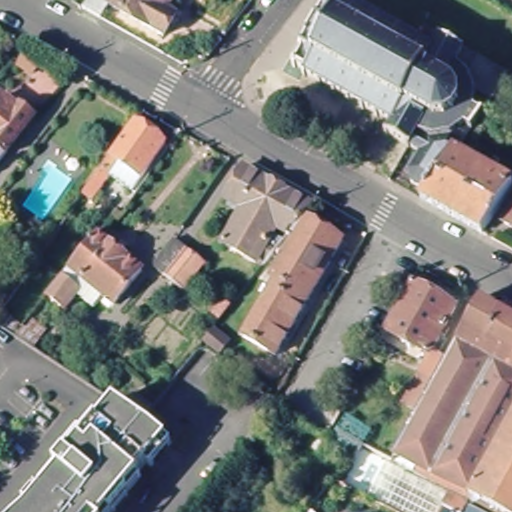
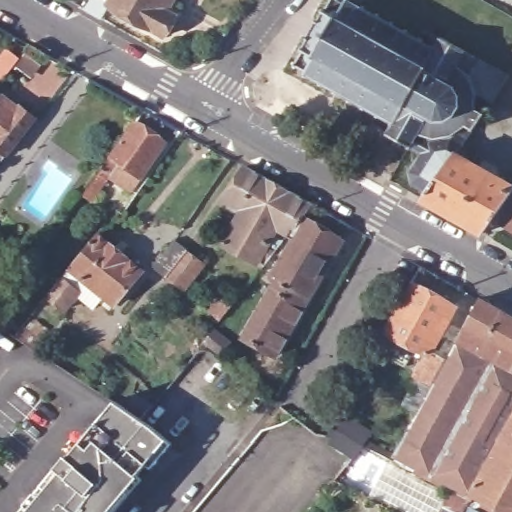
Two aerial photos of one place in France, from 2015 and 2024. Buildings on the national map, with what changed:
unchanged [(177,0),(168,15),(181,23),(170,44),(115,14),(105,27),(87,17),(100,0),(177,0)]
unchanged [(290,62),(293,64),(299,55),(297,53),(300,48),(301,49),(306,41),(305,40),(315,22),(318,23),(323,14),(321,12),(325,7),(327,8),(332,0),(344,0),(346,1),(347,0),(352,0),(357,2),(359,0),(368,0),(365,4),(369,7),(366,11),(377,16),(380,12),(384,15),(382,18),(392,24),(395,21),(399,24),(397,26),(406,32),(408,29),(412,31),(410,35),(423,42),(431,30),(512,77),(512,78),(473,133),(460,139),(445,143),(431,142),(418,164),(407,157),(405,160),(400,157),(402,154),(387,145),(385,149),(380,146),(381,143),(376,141),(380,136),(384,139),(388,134),(385,131),(386,128),(377,122),(374,125),(370,122),(373,118),(365,113),(361,117),(356,114),(358,110),(350,105),(346,109),(340,105),(343,101),(334,96),(331,100),(326,97),(328,93),(320,87),(316,91),(313,89),(316,86),(305,79),(302,84),(297,80),(300,75),(292,70),(291,73),(287,71),(290,69),(287,68),(290,62)]
unchanged [(8,154),(0,148),(0,102),(3,98),(9,91),(24,103),(21,107),(35,118),(8,154)]
unchanged [(137,188),(117,173),(95,203),(87,197),(140,124),(169,145),(137,188)]
unchanged [(409,178),(418,164),(431,142),(445,143),(460,139),(473,133),(458,154),(429,197),(413,188),(409,185),(408,182),(409,178)]
unchanged [(429,197),(458,154),(471,163),(467,169),(502,189),(507,183),(512,186),(512,202),(487,236),(425,202),(429,197)]
unchanged [(284,238),(260,268),(220,243),(236,212),(221,203),(238,171),(306,209),(297,221),(284,238)]
unchanged [(337,245),(270,357),(241,339),(273,284),(268,281),(291,242),(284,238),(297,221),(337,245)]
unchanged [(512,221),(512,228),(508,226),(512,221)]
unchanged [(120,306),(109,297),(100,309),(82,295),(70,311),(51,297),(101,236),(147,272),(120,306)]
unchanged [(186,293),(169,281),(155,272),(176,243),(190,252),(189,255),(205,267),(186,293)]
unchanged [(414,283),(456,306),(429,353),(385,328),(412,282),(414,283)]
unchanged [(221,293),(234,303),(222,317),(209,308),(221,293)]
unchanged [(444,509),(451,496),(448,495),(415,478),(417,474),(396,463),(430,402),(415,394),(430,368),(445,375),(485,304),(512,319),(512,431),(476,497),(471,506),(468,512),(451,512),(446,509),(444,509)]
unchanged [(231,340),(222,350),(205,337),(215,326),(231,340)]
unchanged [(63,459),(67,463),(100,424),(119,402),(141,416),(144,418),(147,421),(165,438),(170,443),(150,469),(144,463),(135,474),(137,476),(125,490),(130,493),(114,511),(114,512),(19,512),(63,459)]
unchanged [(512,512),(502,512),(476,497),(512,431),(512,512)]
unchanged [(446,498),(439,512),(404,512),(372,495),(386,468),(413,482),(446,498)]

